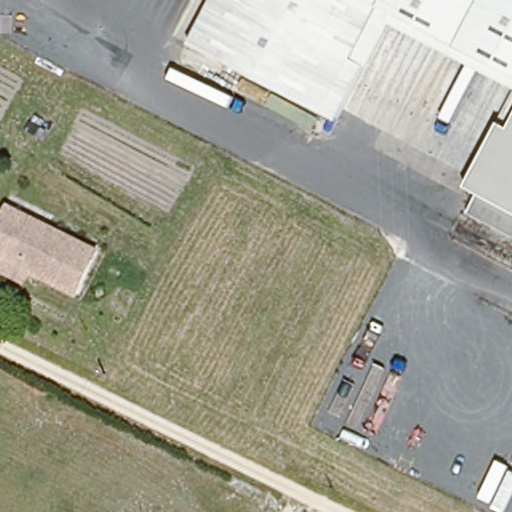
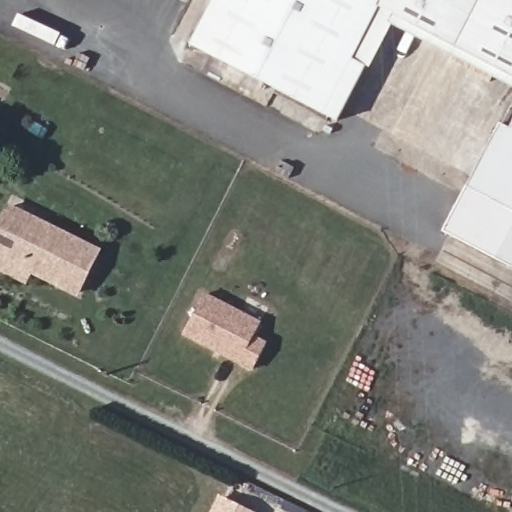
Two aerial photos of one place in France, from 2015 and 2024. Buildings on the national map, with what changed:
unchanged [(193,48),(214,0),(384,0),(404,0),(512,0),(512,78),(395,17),(340,124),(193,48)]
new [(500,124),(512,130),(506,142),(467,214),(512,237),(512,267),(444,232),(500,124)]
unchanged [(506,142),(512,130),(512,237),(467,214),(506,142)]
unchanged [(0,234),(14,207),(103,253),(81,296),(35,272),(29,285),(0,269),(0,234)]
new [(205,295),(260,324),(253,337),(266,345),(254,367),(184,334),(205,295)]
new [(220,495),(254,512),(211,512),(220,495)]

